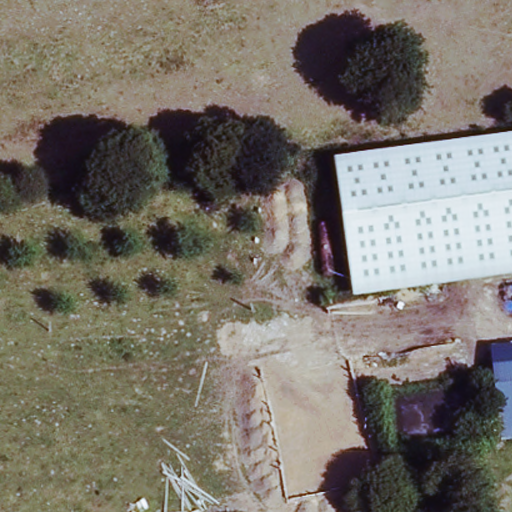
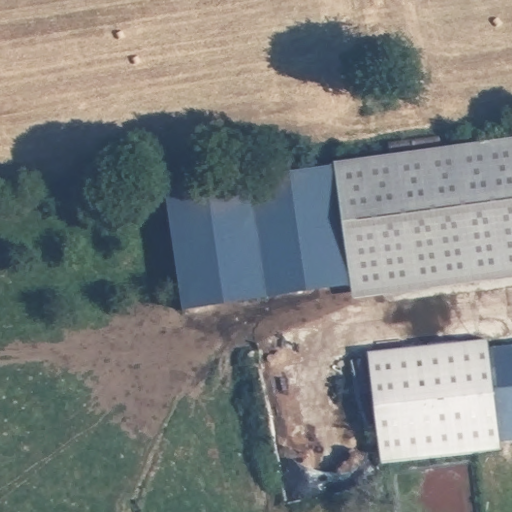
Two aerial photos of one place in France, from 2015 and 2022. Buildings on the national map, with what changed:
unchanged [(512,278),(353,299),(335,161),(512,137),(512,278)]
new [(352,287),(183,312),(166,194),(337,167),(352,287)]
new [(493,370),(500,442),(502,451),(382,463),(368,354),(490,342),(492,350),(493,370)]
unchanged [(512,440),(500,442),(492,350),(512,348),(512,440)]

